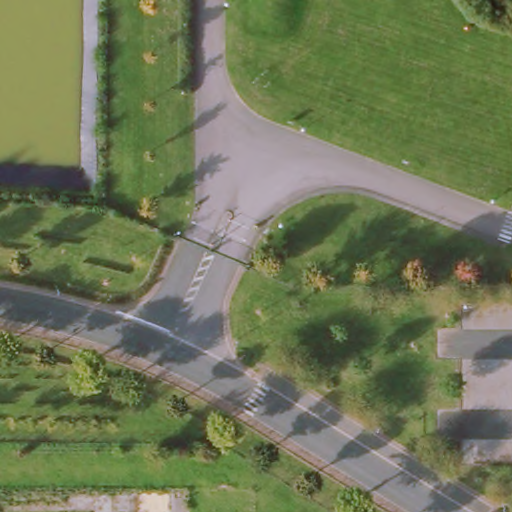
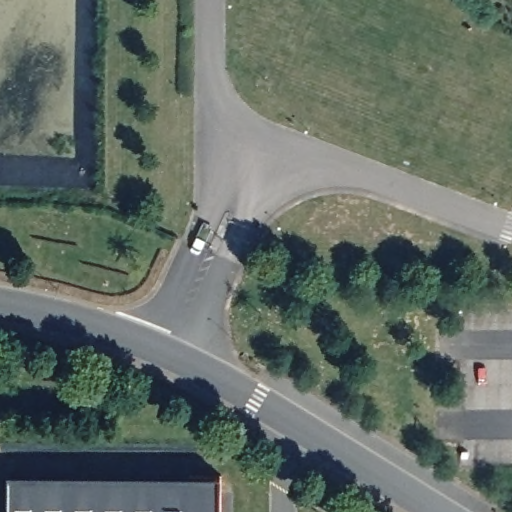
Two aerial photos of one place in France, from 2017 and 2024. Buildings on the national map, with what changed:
new [(221,482),(221,512),(7,512),(7,479),(221,482)]

